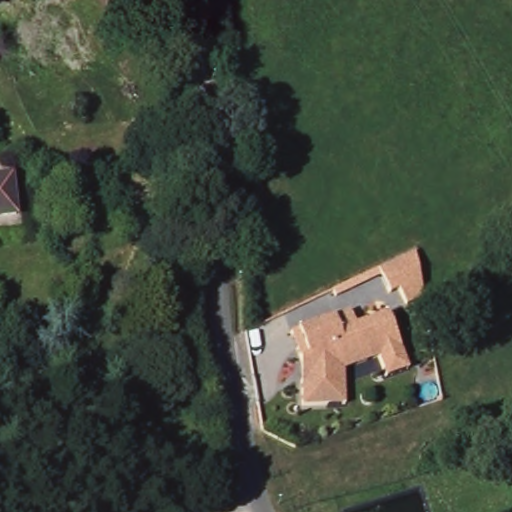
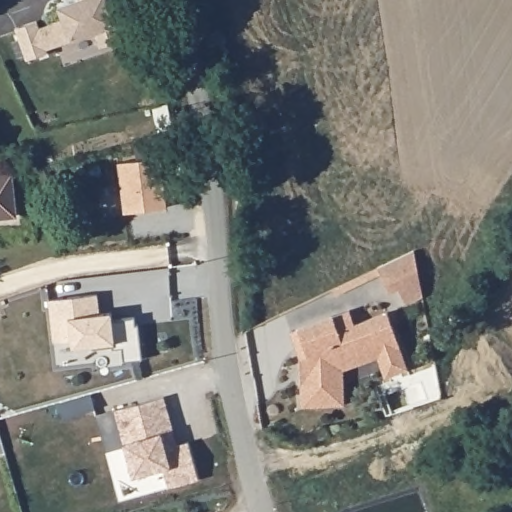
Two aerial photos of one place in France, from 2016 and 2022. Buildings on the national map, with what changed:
new [(40,30),(64,22),(59,9),(80,1),(79,0),(109,0),(123,42),(101,49),(96,34),(47,51),(48,54),(28,62),(17,30),(37,23),(40,30)]
new [(162,210),(124,215),(118,165),(160,159),(165,198),(166,210),(162,210)]
unchanged [(11,175),(16,215),(0,217),(0,177),(11,175)]
unchanged [(393,305),(377,268),(413,253),(425,286),(393,305)]
new [(98,315),(110,313),(111,318),(121,316),(121,319),(134,317),(135,325),(137,325),(142,360),(123,362),(121,349),(112,350),(112,347),(92,350),(92,346),(72,349),(71,341),(53,344),(48,302),(96,296),(98,315)]
unchanged [(385,378),(378,356),(341,370),(341,404),(301,404),(300,358),(291,328),(349,310),(356,325),(387,312),(408,369),(385,378)]
new [(172,431),(177,446),(188,442),(198,479),(168,488),(162,468),(133,476),(114,411),(163,397),(172,431)]

